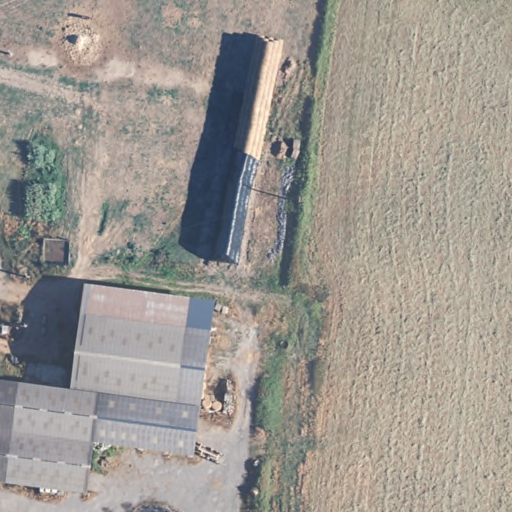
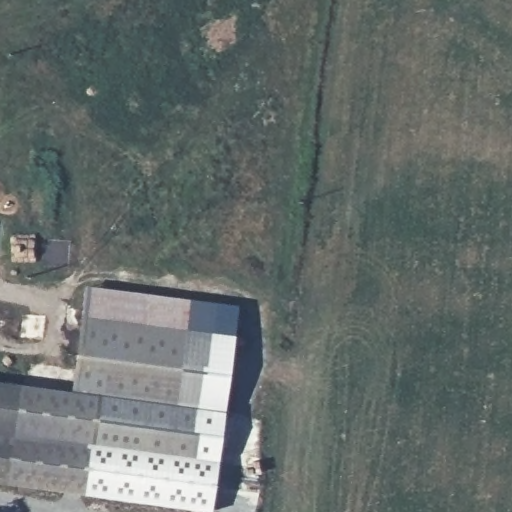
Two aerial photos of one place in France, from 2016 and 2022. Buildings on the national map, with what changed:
unchanged [(67,394),(73,354),(83,290),(187,305),(178,366),(171,409),(95,398),(82,495),(0,483),(0,383),(67,394)]
new [(95,398),(171,409),(178,366),(187,305),(189,299),(238,305),(234,335),(211,512),(82,495),(95,398)]

